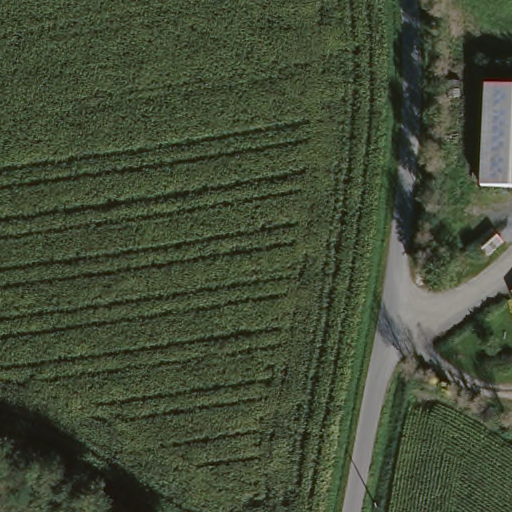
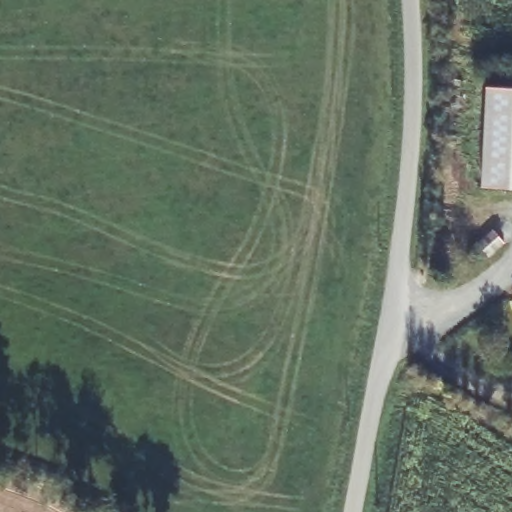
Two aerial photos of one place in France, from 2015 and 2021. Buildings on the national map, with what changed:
unchanged [(512,86),(512,187),(480,186),(485,84),(512,86)]

